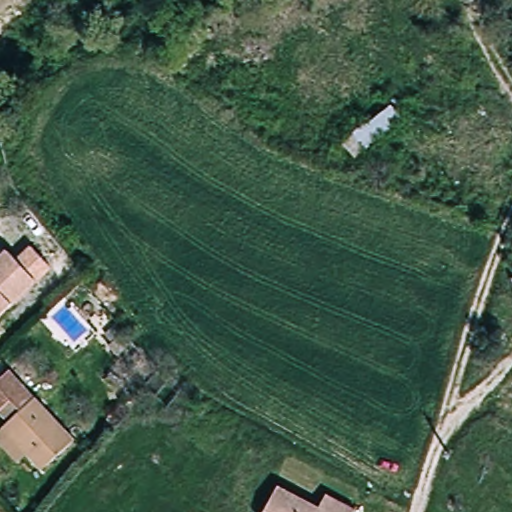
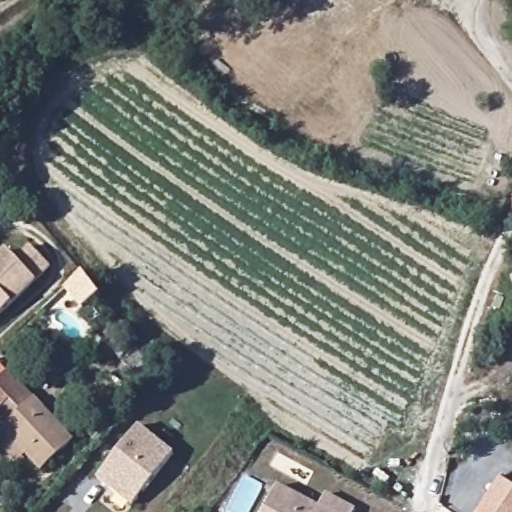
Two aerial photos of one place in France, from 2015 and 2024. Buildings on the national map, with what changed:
unchanged [(352,159),(337,144),(389,102),(402,118),(352,159)]
unchanged [(17,261),(32,248),(51,268),(0,315),(0,258),(8,251),(17,261)]
unchanged [(36,471),(0,429),(0,427),(4,423),(0,419),(0,360),(10,372),(69,443),(36,471)]
new [(174,452),(132,505),(97,479),(139,426),(174,452)]
new [(512,492),(512,512),(481,512),(500,483),(512,492)]
unchanged [(319,507),(328,491),(357,508),(354,512),(266,512),(280,487),(319,507)]

